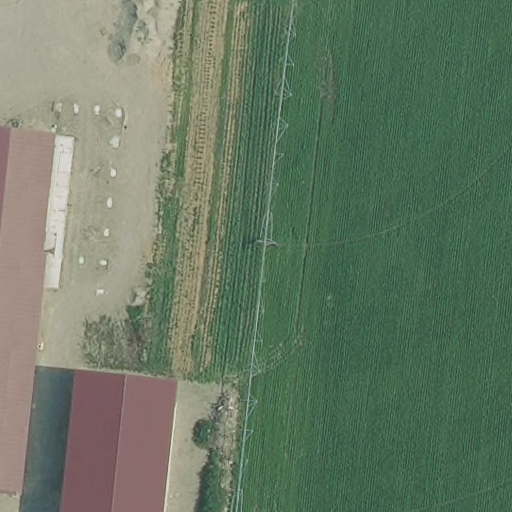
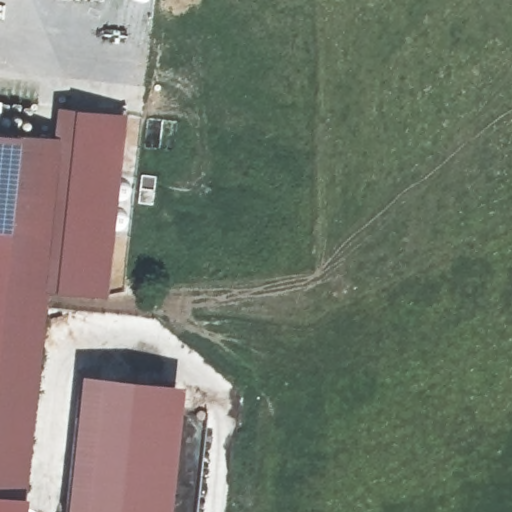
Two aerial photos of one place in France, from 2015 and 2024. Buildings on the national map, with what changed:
new [(49,256),(44,255),(57,135),(51,135),(55,105),(123,112),(104,295),(45,287),(49,256)]
unchanged [(57,135),(44,255),(49,256),(23,495),(0,493),(0,130),(13,131),(57,135)]
unchanged [(166,512),(63,512),(79,373),(179,383),(166,512)]
new [(0,512),(0,493),(23,495),(22,512),(0,512)]

